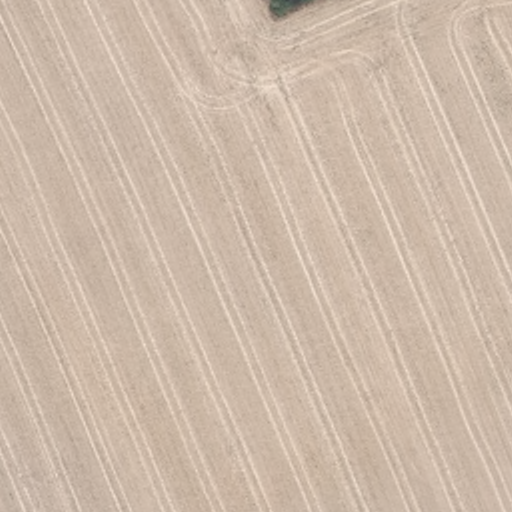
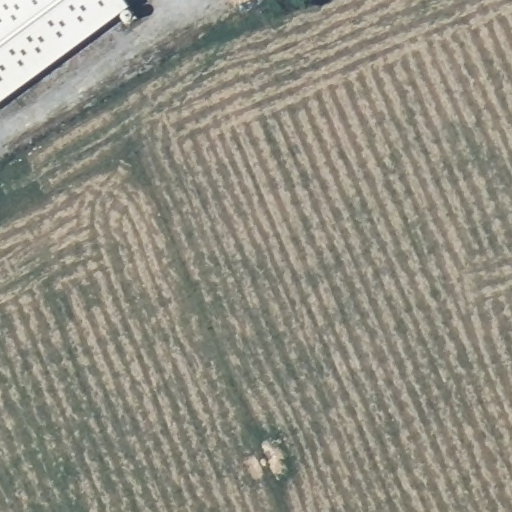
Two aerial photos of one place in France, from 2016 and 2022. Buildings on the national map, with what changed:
new [(0,103),(0,0),(125,0),(130,7),(0,103)]

